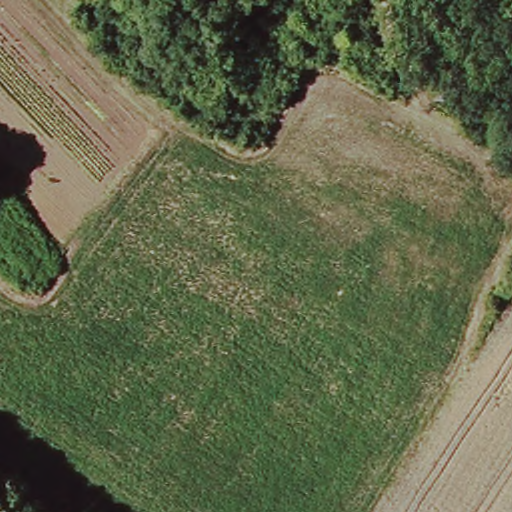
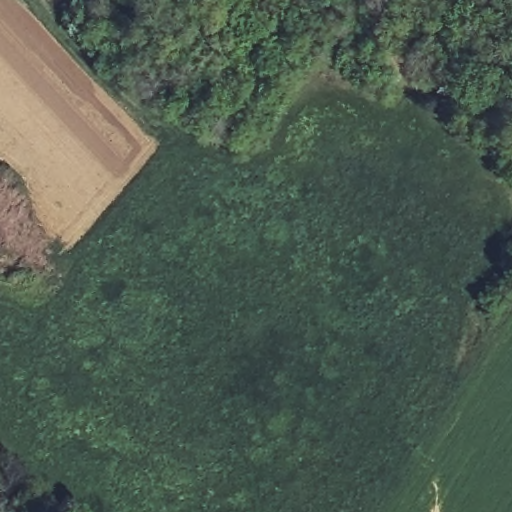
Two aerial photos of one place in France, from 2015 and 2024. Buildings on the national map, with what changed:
unchanged [(431,93),(437,79),(457,88),(452,101),(431,93)]

